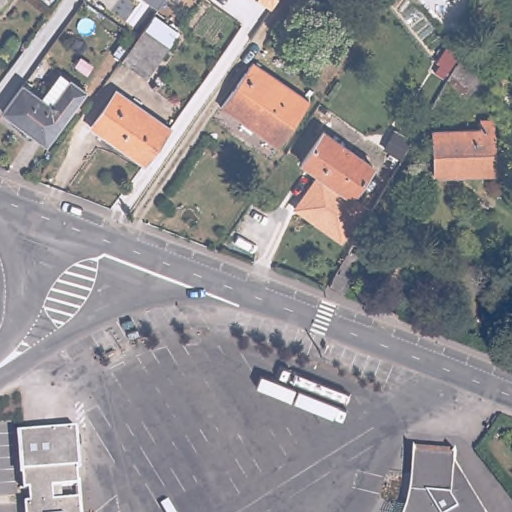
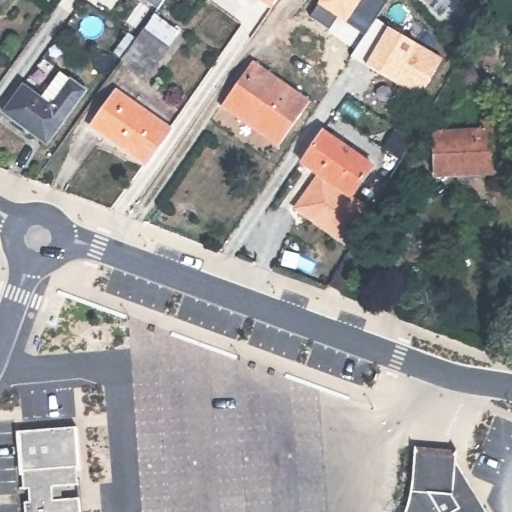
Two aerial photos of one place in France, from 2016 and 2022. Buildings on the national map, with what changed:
unchanged [(0,5),(0,0),(9,0),(3,7),(0,5)]
unchanged [(163,0),(158,7),(146,0),(163,0)]
unchanged [(252,1),(253,0),(274,0),(266,11),(252,1)]
unchanged [(126,33),(135,40),(153,15),(176,32),(144,76),(120,60),(111,54),(126,33)]
new [(350,56),(376,19),(440,65),(415,101),(350,56)]
unchanged [(449,51),(457,45),(476,69),(459,85),(441,66),(449,51)]
unchanged [(219,106),(251,62),(307,101),(276,146),(259,135),(234,117),(219,106)]
unchanged [(22,85),(39,97),(59,72),(85,91),(46,144),(2,112),(22,85)]
unchanged [(117,91),(168,127),(143,164),(91,127),(117,91)]
unchanged [(457,176),(432,176),(431,132),(479,130),(479,120),(491,120),(493,168),(493,175),(457,176)]
unchanged [(298,201),(318,174),(310,168),(332,137),(380,171),(358,202),(371,211),(348,245),(320,225),(294,207),(298,201)]
unchanged [(346,252),(355,258),(349,268),(351,270),(340,292),(326,285),(346,252)]
unchanged [(22,503),(27,503),(26,490),(21,490),(18,432),(28,431),(53,430),(75,429),(77,453),(78,470),(76,470),(77,486),(60,487),(60,500),(78,500),(79,512),(23,512),(22,503)]
unchanged [(415,497),(417,486),(418,478),(418,452),(461,456),(460,468),(487,512),(411,512),(415,497)]

